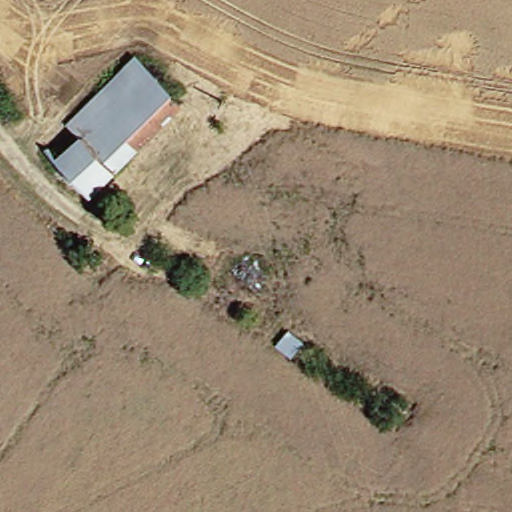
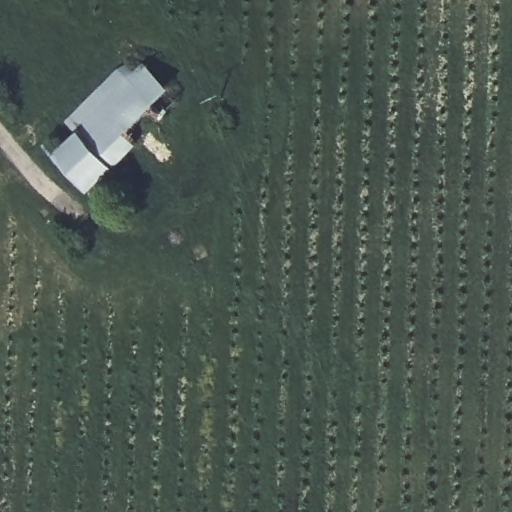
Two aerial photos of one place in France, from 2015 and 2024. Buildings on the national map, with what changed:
unchanged [(130,81),(146,66),(186,104),(175,118),(130,81)]
unchanged [(79,133),(130,81),(175,118),(98,191),(70,167),(57,156),(79,133)]

